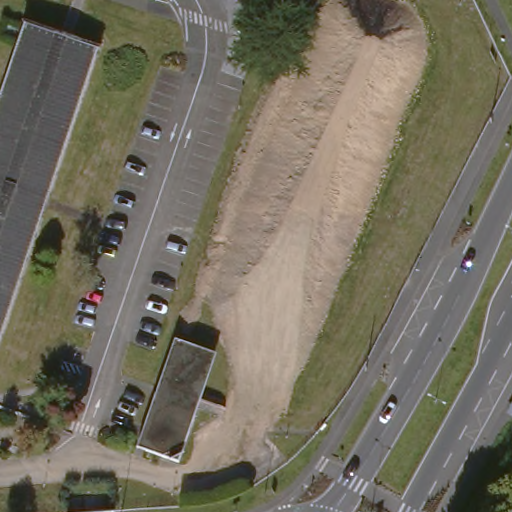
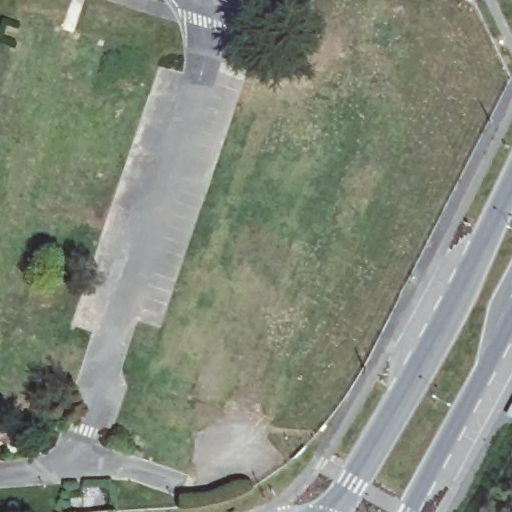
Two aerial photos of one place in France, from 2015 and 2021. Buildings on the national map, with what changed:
demolished [(77,40),(78,40),(99,47),(0,341),(0,107),(29,21),(56,31),(57,31),(77,40)]
demolished [(168,390),(179,355),(197,360),(186,395),(168,390)]
demolished [(136,448),(153,403),(193,416),(176,461),(136,448)]

